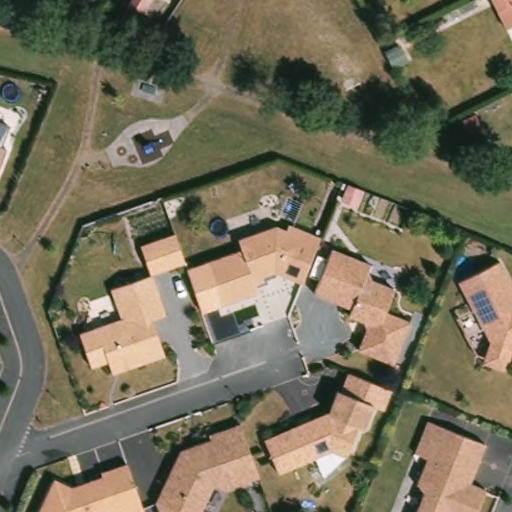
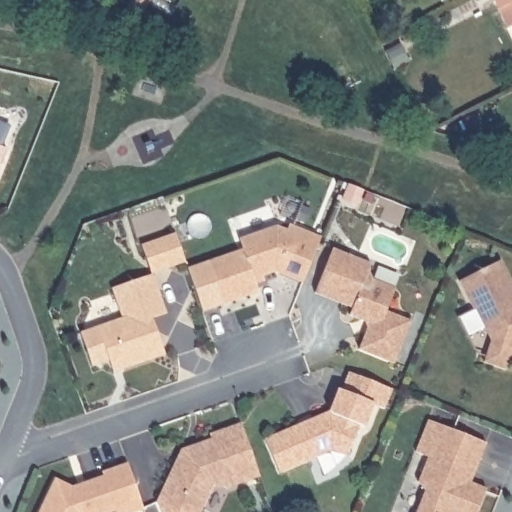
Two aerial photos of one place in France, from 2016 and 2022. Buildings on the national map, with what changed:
unchanged [(494,0),(512,0),(512,22),(506,25),(494,0)]
unchanged [(9,146),(0,168),(0,142),(9,146)]
unchanged [(353,183),(353,184),(351,189),(337,183),(339,178),(353,183)]
unchanged [(273,269),(257,275),(261,290),(222,303),(207,258),(243,246),(240,234),(272,223),(286,229),(290,224),(320,239),(302,282),(273,269)]
unchanged [(376,264),(374,269),(377,279),(400,289),(390,311),(415,322),(397,364),(362,349),(371,327),(369,320),(354,314),(357,307),(319,291),(338,247),(376,264)]
unchanged [(512,280),(512,357),(508,367),(486,359),(492,338),(463,282),(502,263),(512,280)]
unchanged [(106,362),(89,368),(77,332),(122,318),(111,286),(152,273),(158,289),(168,315),(153,320),(165,357),(120,371),(110,374),(106,362)]
unchanged [(333,411),(343,389),(376,402),(367,426),(361,424),(348,455),(331,448),(277,466),(266,434),(333,411)]
unchanged [(266,473),(231,486),(215,481),(201,512),(191,512),(161,499),(185,444),(213,434),(218,426),(247,415),(266,473)]
unchanged [(424,488),(417,479),(427,454),(415,449),(428,417),(486,441),(470,480),(486,487),(476,512),(414,512),(424,488)]
unchanged [(145,510),(140,512),(113,512),(112,512),(37,512),(51,479),(69,484),(129,464),(145,510)]

